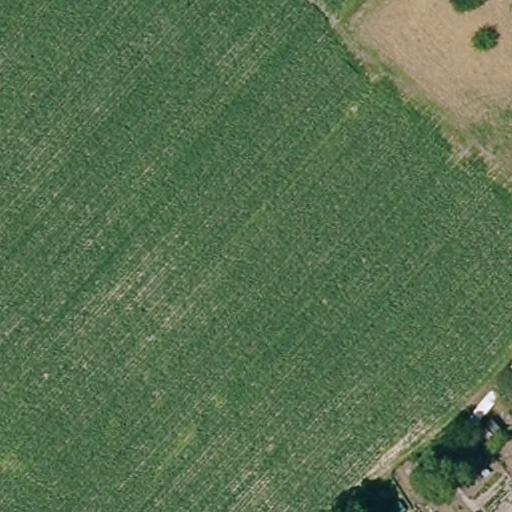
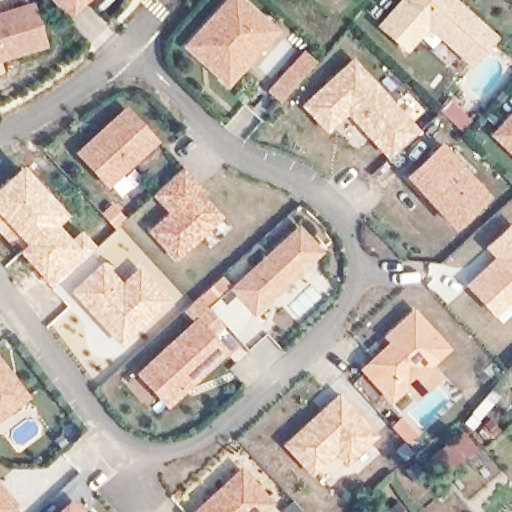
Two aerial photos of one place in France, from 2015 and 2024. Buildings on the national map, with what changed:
new [(53,0),(87,0),(69,17),(53,0)]
new [(182,46),(226,0),(245,0),(279,30),(229,86),(182,46)]
new [(412,0),(454,0),(499,39),(477,64),(433,26),(411,51),(386,30),(412,0)]
new [(0,62),(0,13),(33,3),(48,48),(0,62)]
new [(349,112),(327,132),(301,106),(353,58),(420,129),(390,158),(349,112)]
new [(77,153),(127,107),(159,142),(109,187),(77,153)]
new [(512,112),(512,150),(493,132),(512,112)]
new [(404,175),(442,143),(491,197),(455,230),(404,175)]
new [(21,163),(68,213),(58,223),(69,237),(80,228),(97,247),(52,289),(0,234),(0,182),(21,163)]
new [(177,261),(149,231),(168,213),(153,195),(184,168),(203,189),(200,192),(223,218),(177,261)]
new [(193,321),(185,312),(199,298),(209,307),(219,299),(225,304),(235,296),(230,287),(298,225),(324,251),(234,335),(224,326),(213,335),(229,354),(169,408),(137,372),(193,321)]
new [(468,284),(494,259),(486,249),(512,225),(512,299),(495,313),(468,284)]
new [(71,291),(102,262),(123,282),(139,267),(170,301),(121,346),(71,291)]
new [(360,369),(389,342),(384,336),(415,308),(452,349),(432,368),(441,378),(417,401),(406,391),(392,404),(360,369)]
new [(30,398),(0,420),(0,358),(30,398)]
unchanged [(512,364),(512,372),(508,368),(512,364)]
new [(283,444),(339,393),(379,436),(347,464),(335,453),(313,476),(283,444)]
new [(274,503),(264,512),(193,512),(242,467),(274,503)]
new [(18,505),(11,512),(0,512),(0,484),(18,505)]
new [(72,499),(84,512),(58,512),(68,502),(72,499)]

